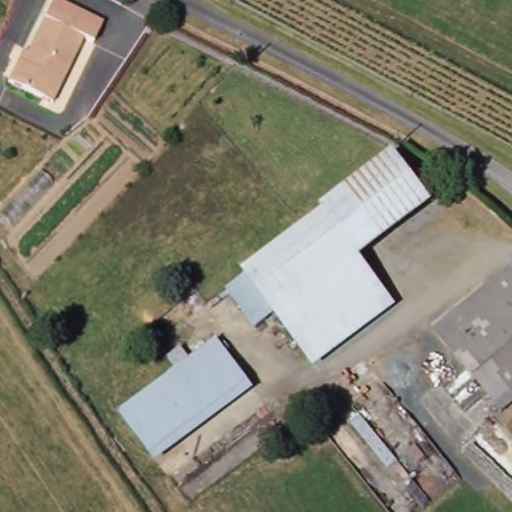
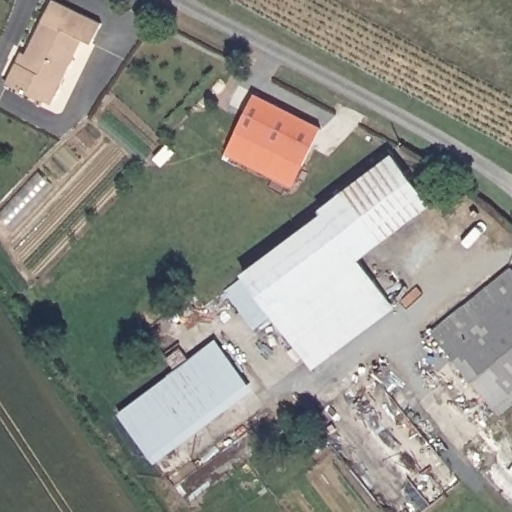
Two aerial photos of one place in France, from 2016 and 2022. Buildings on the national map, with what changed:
unchanged [(6,77),(16,59),(24,59),(52,0),(65,0),(104,17),(94,40),(84,35),(62,80),(53,100),(41,95),(6,77)]
new [(255,93),(322,125),(293,185),(227,151),(255,93)]
unchanged [(434,202),(363,255),(389,292),(307,351),(246,269),(325,210),(322,204),(396,151),(434,202)]
unchanged [(511,405),(499,411),(438,336),(436,330),(512,265),(512,266),(512,404),(511,405)]
unchanged [(249,383),(150,455),(121,412),(218,342),(249,383)]

